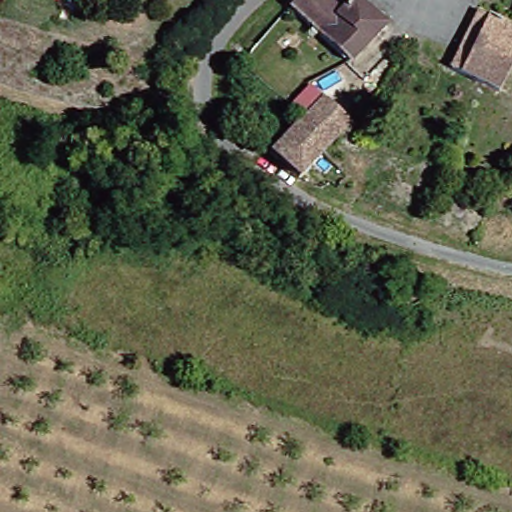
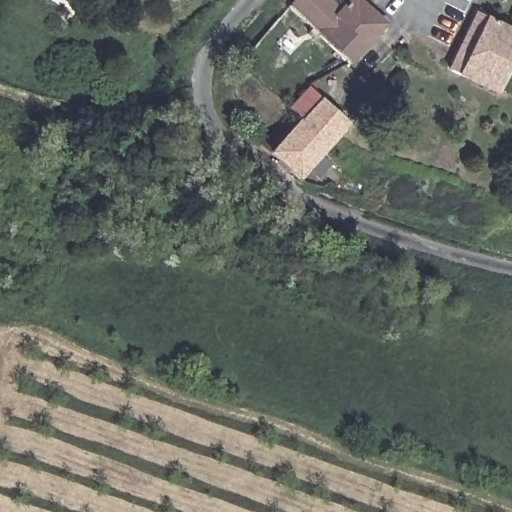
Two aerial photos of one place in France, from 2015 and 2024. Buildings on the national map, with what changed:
unchanged [(341,0),(357,0),(382,23),(370,36),(343,64),(283,5),(288,0),(327,0),(335,7),(341,0)]
unchanged [(488,91),(437,69),(466,11),(512,34),(512,41),(502,62),(488,91)]
unchanged [(502,62),(512,41),(512,67),(502,62)]
unchanged [(285,120),(290,115),(278,102),(300,81),(311,92),(338,119),(312,146),(321,155),(297,180),(287,173),(286,174),(249,138),(274,110),(285,120)]
unchanged [(507,141),(512,132),(512,143),(507,141)]

